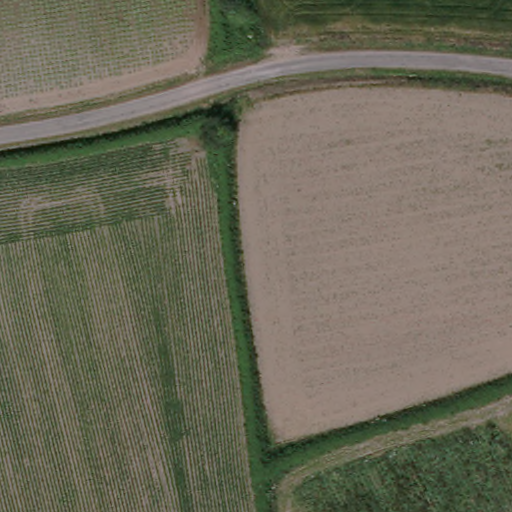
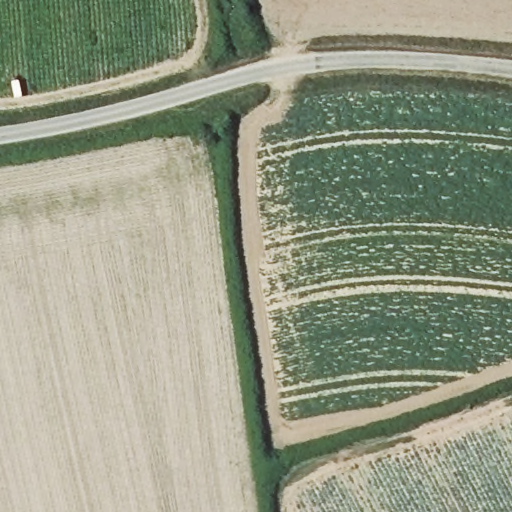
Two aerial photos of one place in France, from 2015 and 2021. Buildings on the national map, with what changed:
[]

